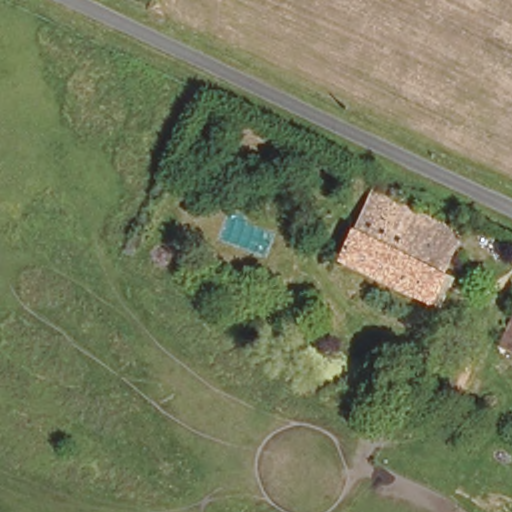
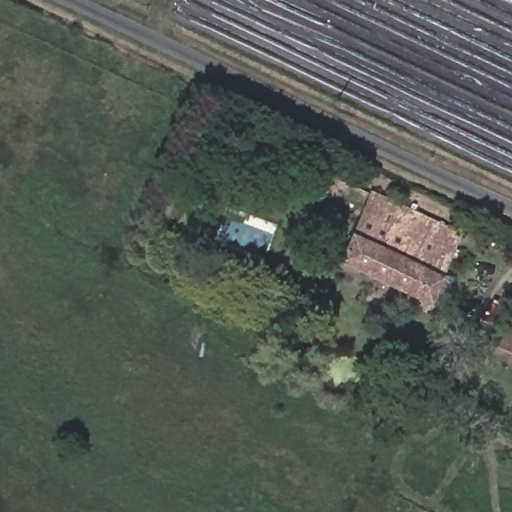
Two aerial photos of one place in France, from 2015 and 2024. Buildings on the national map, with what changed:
unchanged [(370,191),(461,234),(442,273),(395,251),(380,284),(337,264),(370,191)]
unchanged [(395,251),(442,273),(426,307),(380,284),(395,251)]
unchanged [(497,352),(512,316),(512,358),(497,352)]

